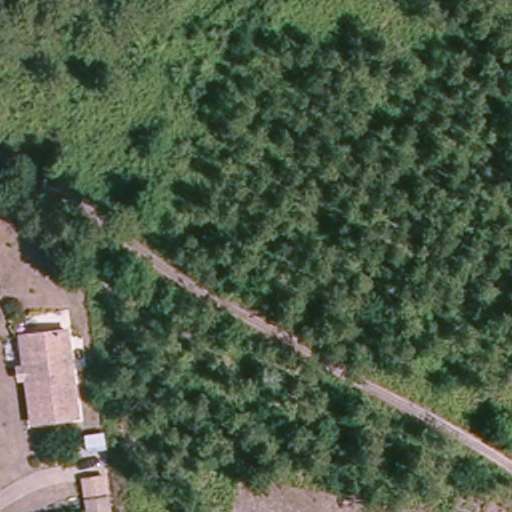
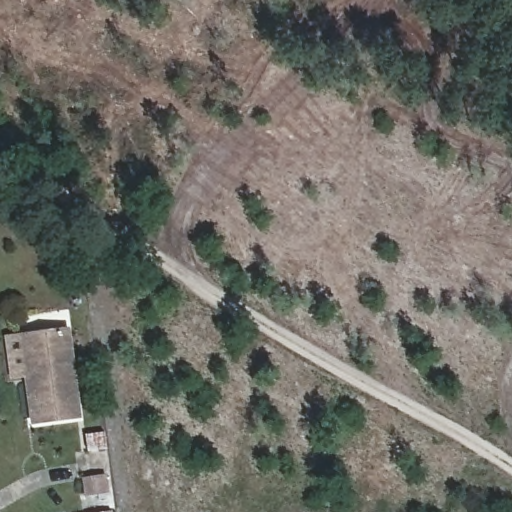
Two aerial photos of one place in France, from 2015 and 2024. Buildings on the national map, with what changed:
unchanged [(67,327),(79,412),(35,419),(23,334),(67,327)]
unchanged [(102,472),(108,512),(83,512),(77,476),(102,472)]

